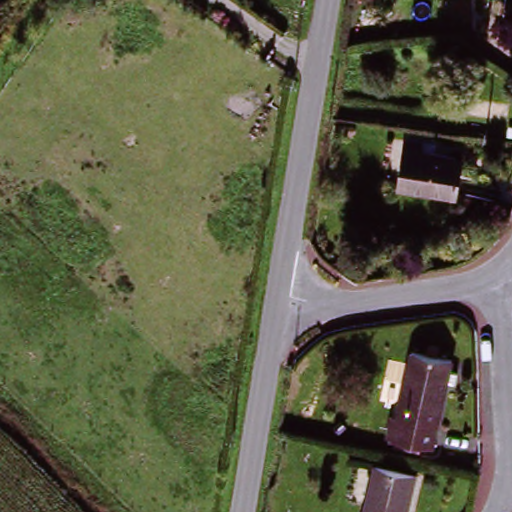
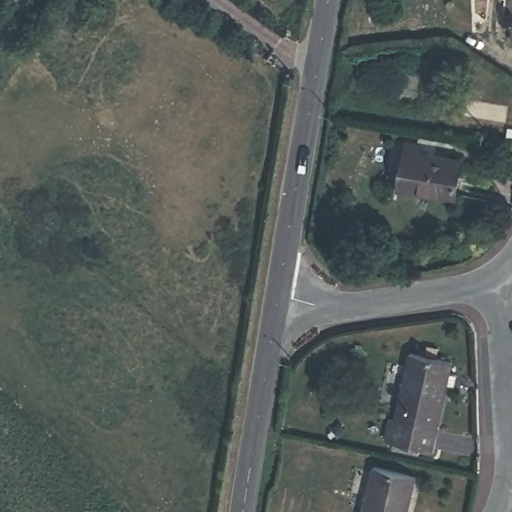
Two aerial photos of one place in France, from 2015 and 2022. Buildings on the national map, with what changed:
unchanged [(455,200),(401,193),(406,155),(459,161),(455,200)]
unchanged [(407,357),(448,366),(436,432),(432,452),(385,443),(390,423),(393,424),(407,357)]
unchanged [(410,473),(402,512),(360,512),(370,464),(410,473)]

